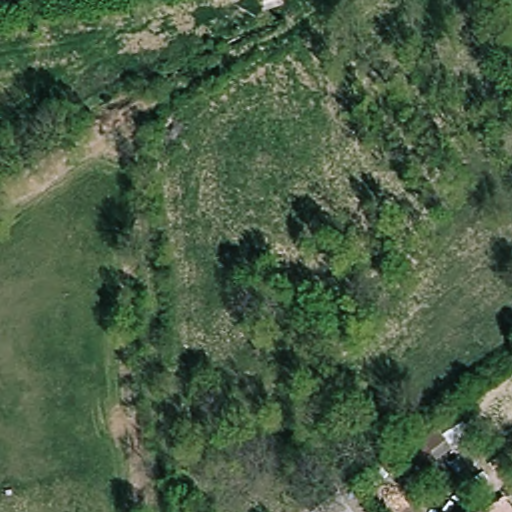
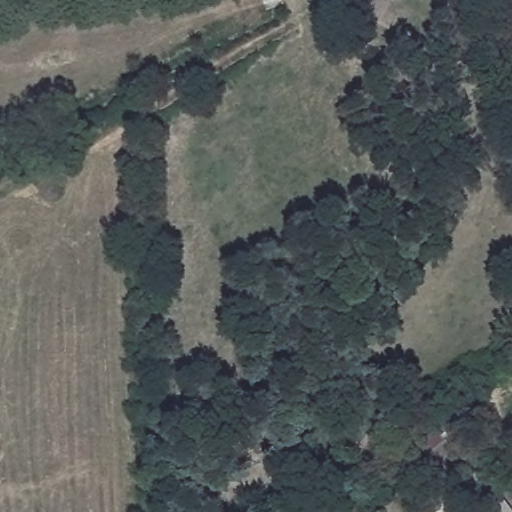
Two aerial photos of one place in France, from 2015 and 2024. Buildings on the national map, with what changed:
unchanged [(443,439),(446,445),(430,457),(421,445),(457,416),(463,424),(443,439)]

